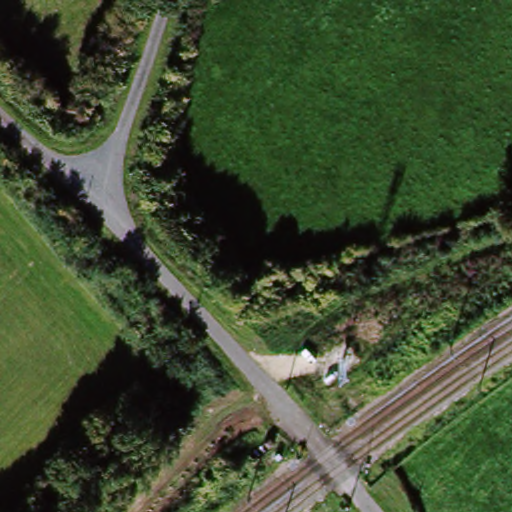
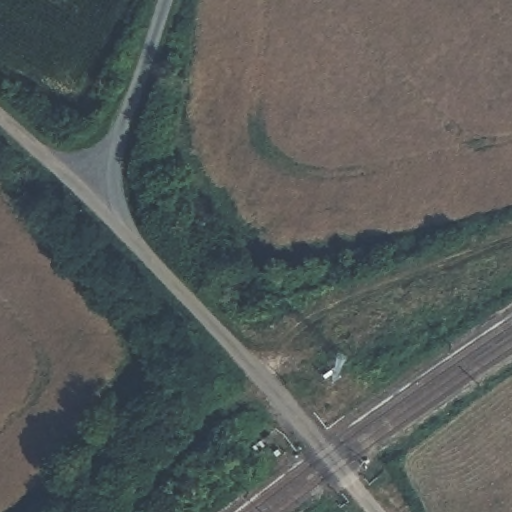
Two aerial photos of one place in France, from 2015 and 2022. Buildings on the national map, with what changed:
[]

